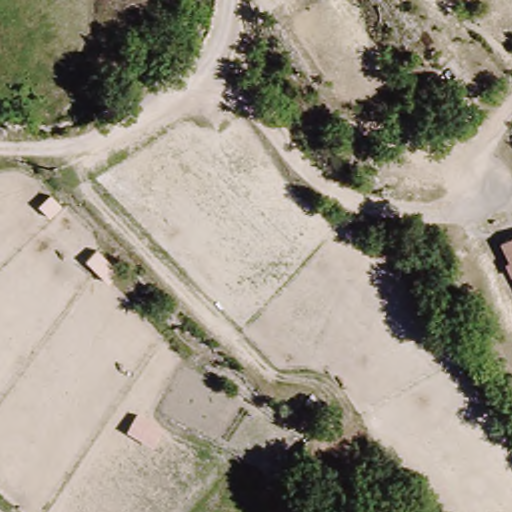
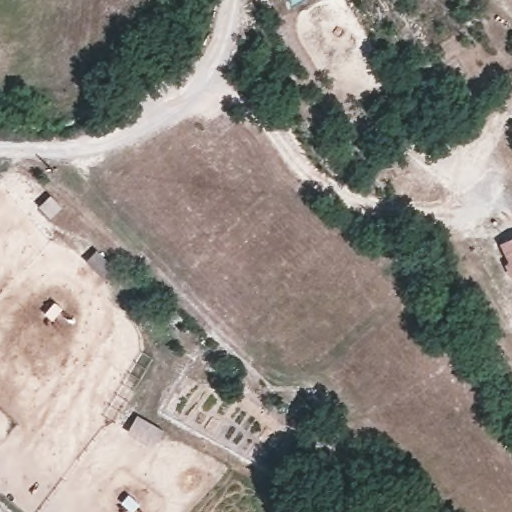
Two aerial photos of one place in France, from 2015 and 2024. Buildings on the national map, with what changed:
unchanged [(512,235),(512,267),(499,242),(512,235)]

